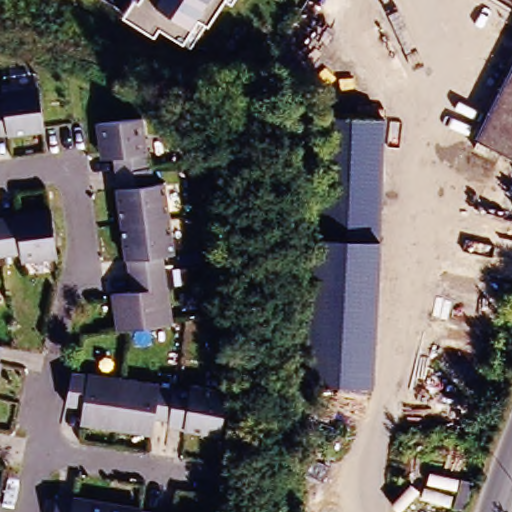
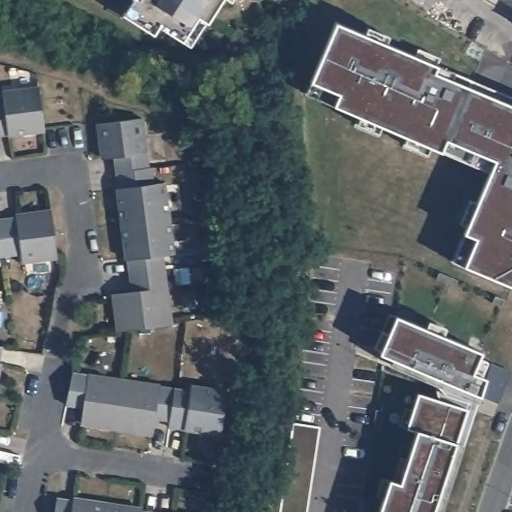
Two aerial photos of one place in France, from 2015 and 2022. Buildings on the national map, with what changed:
unchanged [(209,22),(192,47),(184,41),(160,27),(155,35),(124,15),(132,0),(223,0),(209,22)]
unchanged [(232,2),(229,0),(234,0),(232,2)]
unchanged [(512,8),(500,0),(512,0),(512,8)]
new [(435,71),(512,104),(512,286),(464,265),(452,261),(465,231),(490,169),(442,150),(334,105),(309,91),(312,79),(335,22),(439,64),(435,71)]
unchanged [(34,89),(39,130),(39,132),(2,137),(1,132),(0,133),(0,93),(34,89)]
unchanged [(89,123),(135,117),(140,151),(138,151),(140,168),(114,171),(110,155),(94,157),(89,123)]
unchanged [(140,168),(144,167),(145,184),(157,182),(160,204),(163,219),(115,225),(110,194),(109,189),(115,188),(114,171),(140,168)]
unchanged [(11,221),(10,214),(47,209),(53,256),(17,261),(15,252),(0,255),(0,222),(11,221)]
unchanged [(163,219),(168,255),(156,256),(159,273),(129,277),(126,260),(120,260),(115,225),(163,219)]
unchanged [(159,273),(160,290),(162,290),(167,327),(123,332),(112,334),(107,297),(131,294),(129,277),(159,273)]
new [(474,371),(487,377),(480,395),(472,392),(470,398),(468,408),(457,441),(434,512),(379,512),(390,479),(400,482),(416,429),(405,426),(417,391),(435,397),(439,385),(389,366),(390,358),(380,353),(395,315),(482,351),(474,371)]
unchanged [(109,432),(72,427),(75,406),(59,404),(64,376),(80,378),(80,377),(117,382),(109,432)]
unchanged [(152,388),(152,390),(167,391),(164,419),(148,417),(145,437),(109,432),(117,382),(152,388)]
unchanged [(184,394),(185,386),(222,391),(215,436),(163,428),(164,419),(167,391),(184,394)]
new [(320,425),(306,512),(278,512),(292,423),(320,425)]
unchanged [(98,512),(47,512),(48,502),(49,495),(65,497),(65,496),(100,502),(98,512)]
unchanged [(135,507),(135,512),(98,512),(100,502),(135,507)]

